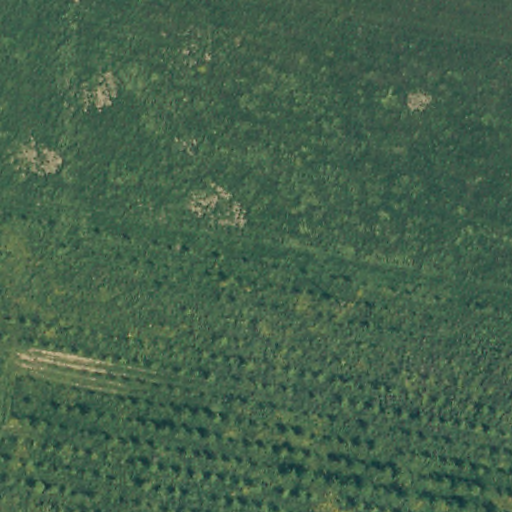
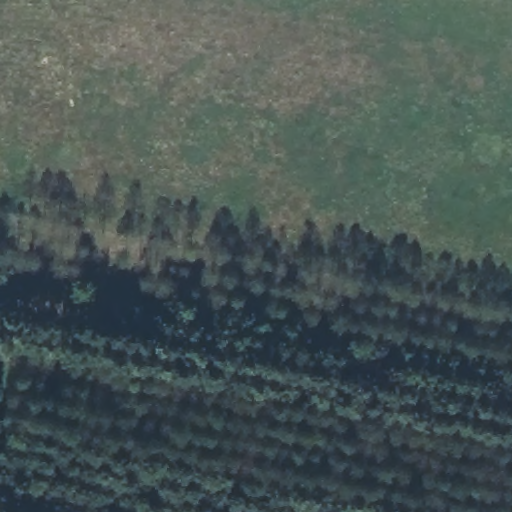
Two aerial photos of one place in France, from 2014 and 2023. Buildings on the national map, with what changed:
[]

